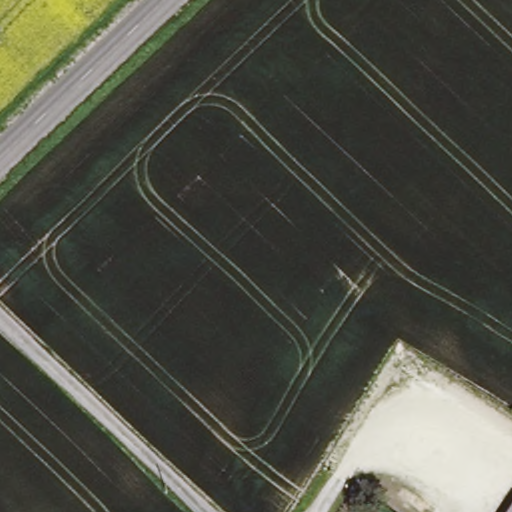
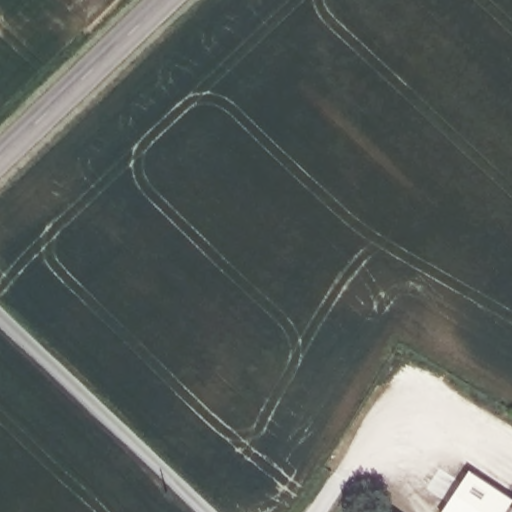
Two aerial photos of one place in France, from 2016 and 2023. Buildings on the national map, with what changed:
demolished [(460,400),(441,388),(450,375),(468,386),(460,400)]
new [(512,497),(512,511),(512,512),(442,512),(469,471),(512,497)]
unchanged [(511,512),(512,511),(512,512),(511,512)]

